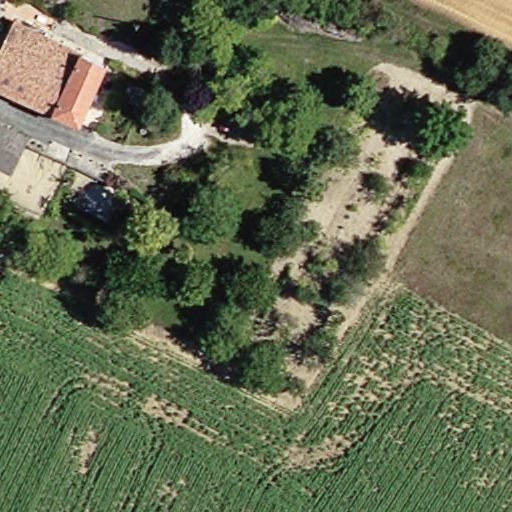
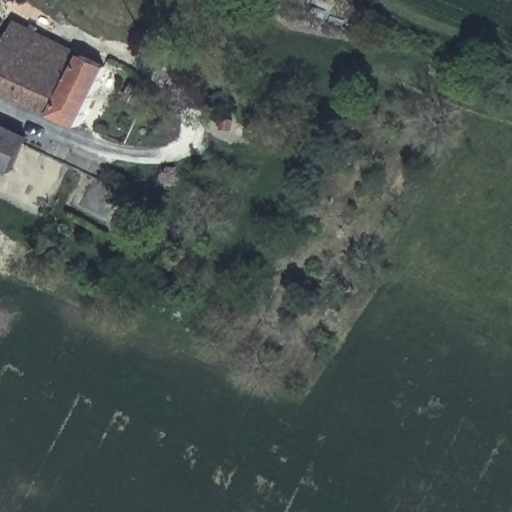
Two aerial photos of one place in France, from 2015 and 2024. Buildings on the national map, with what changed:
unchanged [(9,61),(29,21),(67,41),(36,102),(0,84),(0,57),(9,61)]
unchanged [(95,56),(64,116),(36,102),(67,41),(95,56)]
unchanged [(87,128),(64,116),(95,56),(119,67),(87,128)]
unchanged [(5,165),(0,163),(0,120),(23,131),(19,140),(5,165)]

